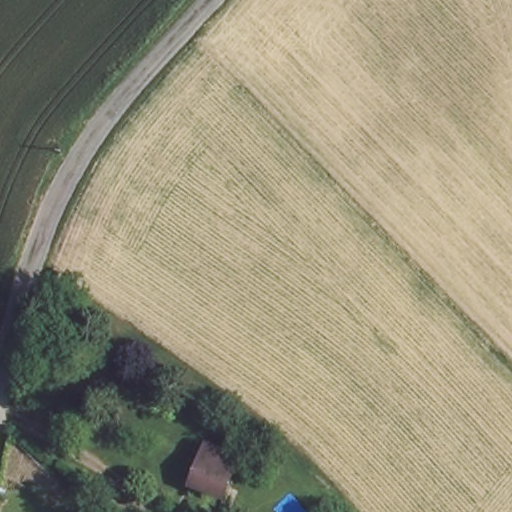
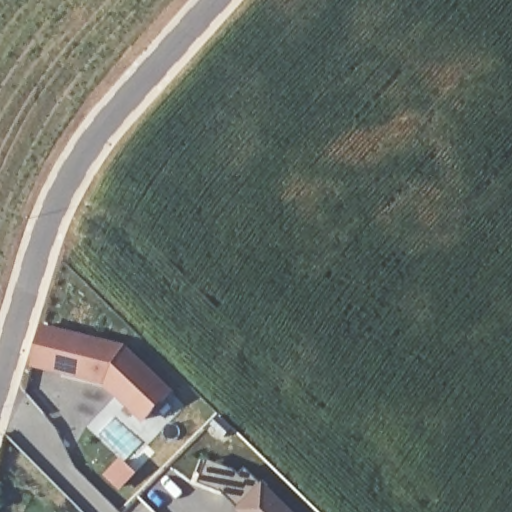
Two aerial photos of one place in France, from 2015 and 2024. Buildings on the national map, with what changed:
new [(104,385),(33,367),(43,325),(126,346),(174,390),(143,423),(104,385)]
demolished [(24,373),(44,386),(33,420),(16,404),(24,373)]
demolished [(219,498),(184,483),(196,454),(231,469),(219,498)]
new [(237,511),(239,507),(222,491),(200,483),(209,462),(236,472),(240,477),(246,470),(264,484),(292,512),(238,512),(237,511)]

